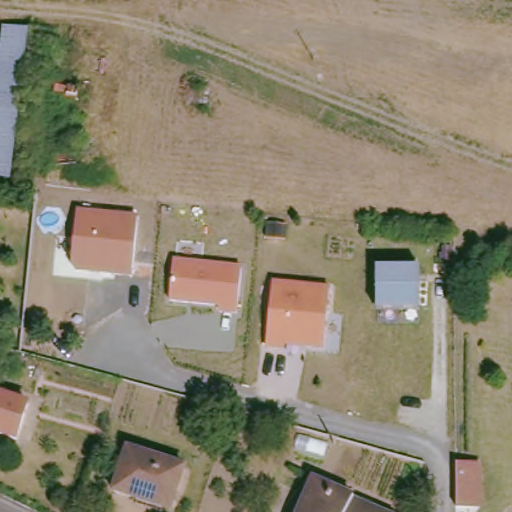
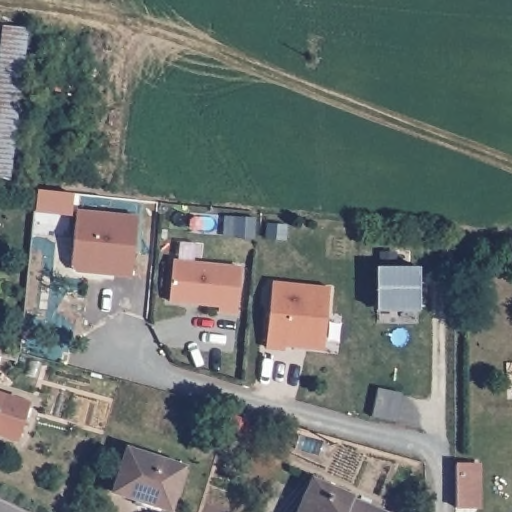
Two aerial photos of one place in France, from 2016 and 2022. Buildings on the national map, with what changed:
unchanged [(0,51),(3,26),(48,31),(29,189),(0,186),(0,51)]
unchanged [(138,216),(132,275),(75,271),(71,264),(77,209),(138,216)]
unchanged [(236,311),(218,309),(219,303),(169,298),(174,258),(242,264),(236,311)]
unchanged [(375,265),(418,265),(418,309),(376,309),(375,265)]
unchanged [(283,344),(283,348),(265,347),(272,279),(330,285),(323,347),(283,344)]
unchanged [(0,394),(27,403),(15,439),(0,434),(0,394)]
unchanged [(142,501),(113,491),(127,449),(182,466),(171,502),(169,509),(142,501)]
unchanged [(456,460),(482,461),(482,507),(456,507),(456,460)]
unchanged [(312,479),(352,496),(348,506),(362,512),(298,512),(312,479)]
unchanged [(368,507),(381,512),(366,512),(368,507)]

